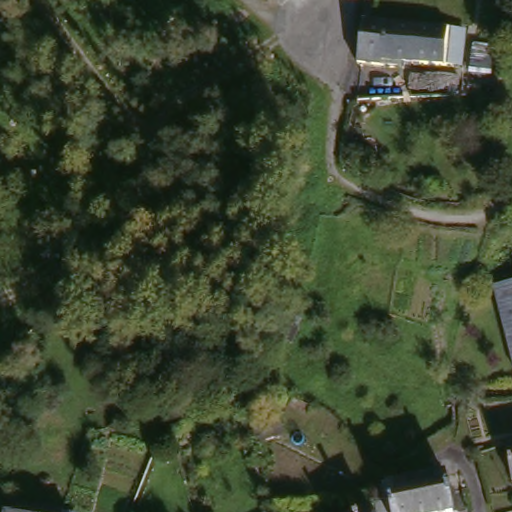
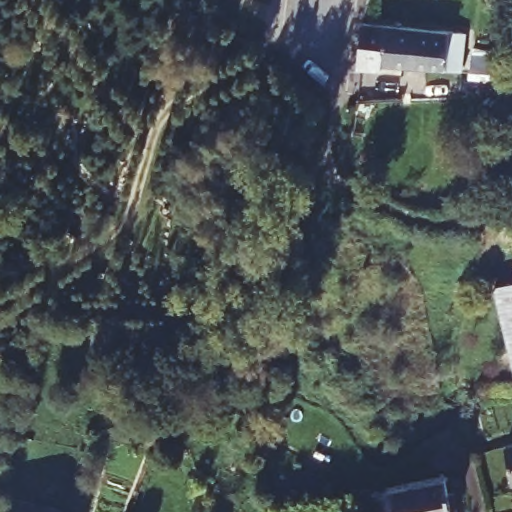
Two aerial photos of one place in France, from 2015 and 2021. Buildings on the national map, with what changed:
unchanged [(460,62),(447,61),(384,56),(384,61),(360,58),(364,16),(451,25),(464,26),(460,62)]
unchanged [(512,288),(512,373),(492,293),(512,288)]
unchanged [(512,483),(503,485),(497,447),(512,445),(512,483)]
unchanged [(443,512),(382,512),(378,488),(437,476),(443,512)]
unchanged [(371,512),(369,512),(371,511),(371,512)]

